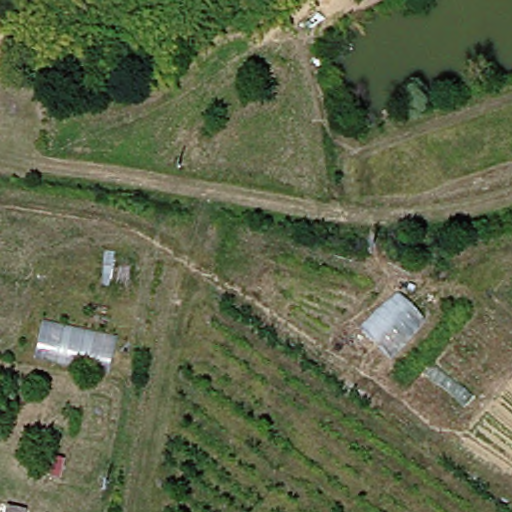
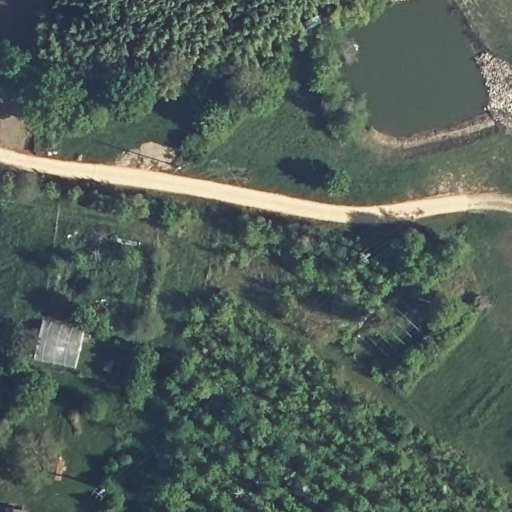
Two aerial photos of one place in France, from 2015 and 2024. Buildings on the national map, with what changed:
demolished [(431,317),(389,360),(362,333),(404,290),(431,317)]
unchanged [(116,335),(107,374),(33,359),(42,320),(116,335)]
demolished [(0,512),(0,508),(13,509),(29,510),(28,512),(0,512)]

